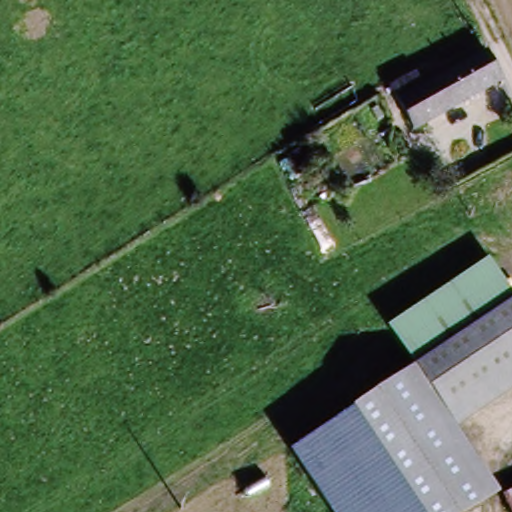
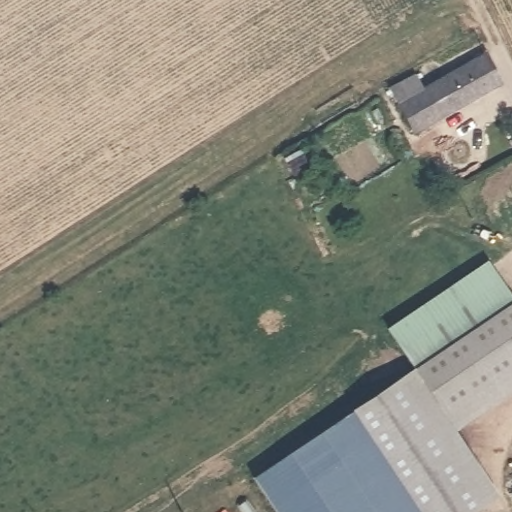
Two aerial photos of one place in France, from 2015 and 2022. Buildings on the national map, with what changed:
unchanged [(472,41),(495,85),(414,130),(390,86),(472,41)]
unchanged [(413,364),(386,328),(489,259),(512,293),(512,392),(457,430),(452,422),(413,364)]
unchanged [(496,492),(467,512),(336,512),(290,445),(413,364),(452,422),(496,492)]
new [(276,512),(254,478),(293,451),(336,512),(276,512)]

